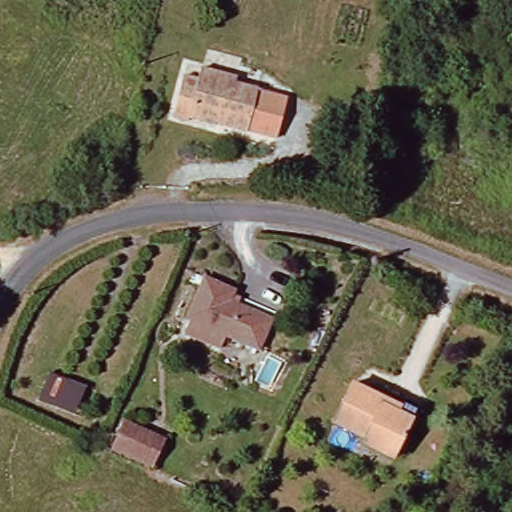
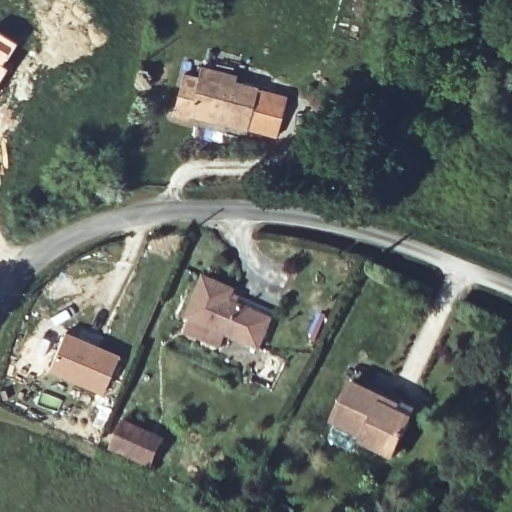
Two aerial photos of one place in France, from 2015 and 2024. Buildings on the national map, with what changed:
new [(3,66),(8,69),(0,81),(0,33),(16,43),(3,66)]
unchanged [(182,76),(200,81),(204,67),(244,79),(239,93),(286,106),(275,146),(214,128),(216,120),(195,114),(193,121),(170,115),(182,76)]
unchanged [(232,297),(227,307),(268,322),(255,357),(181,330),(198,286),(232,297)]
new [(66,332),(119,354),(103,393),(50,371),(66,332)]
unchanged [(368,393),(371,387),(419,408),(391,463),(362,450),(366,444),(330,427),(351,387),(368,393)]
unchanged [(165,442),(153,471),(111,454),(126,424),(165,442)]

